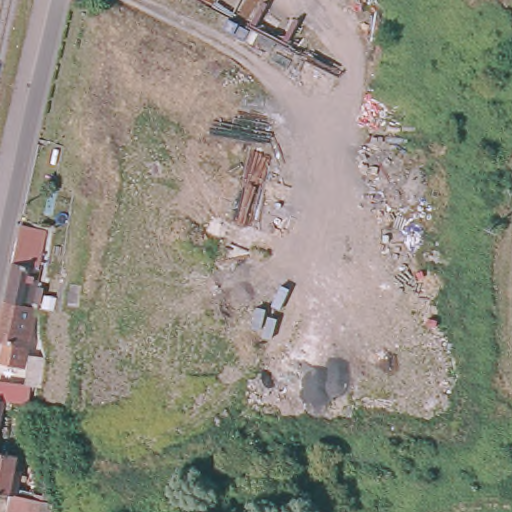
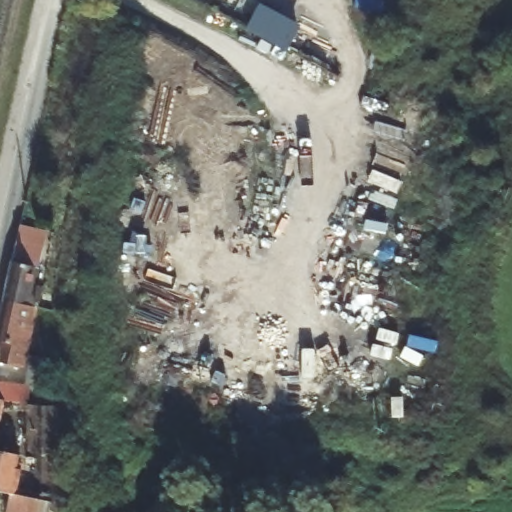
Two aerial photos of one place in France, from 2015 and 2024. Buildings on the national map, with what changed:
new [(302,26),(287,52),(245,29),(260,3),(302,26)]
unchanged [(16,252),(37,257),(27,306),(5,301),(16,252)]
unchanged [(27,346),(22,367),(0,361),(0,355),(2,356),(6,342),(0,341),(0,322),(5,301),(27,306),(18,343),(27,346)]
unchanged [(22,407),(14,406),(13,410),(7,409),(0,439),(0,375),(26,377),(22,407)]
unchanged [(7,491),(1,490),(0,489),(0,448),(15,451),(7,489),(7,491)]
unchanged [(7,491),(49,499),(47,512),(0,512),(0,493),(1,490),(7,491)]

